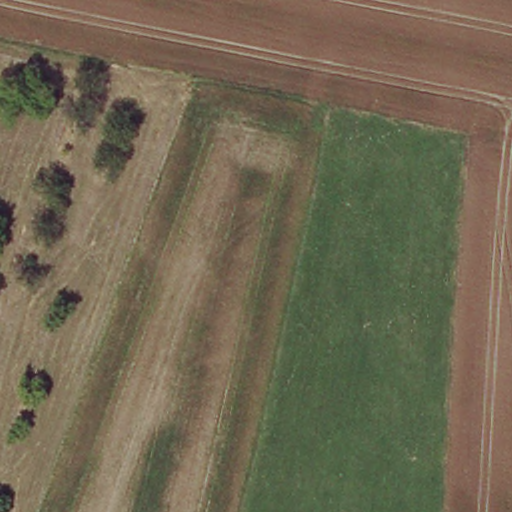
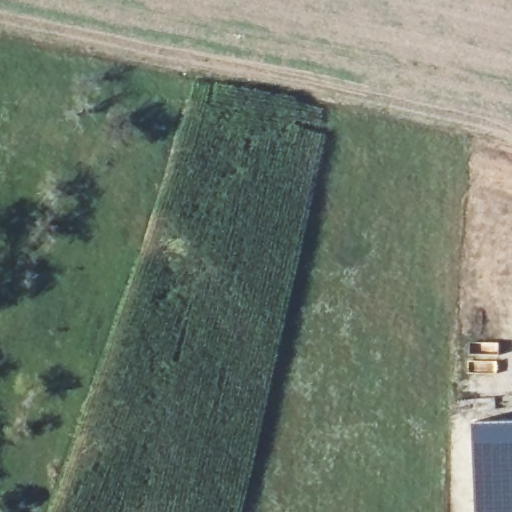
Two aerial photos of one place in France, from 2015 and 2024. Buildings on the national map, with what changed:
new [(512,512),(475,512),(472,421),(512,419),(512,512)]

